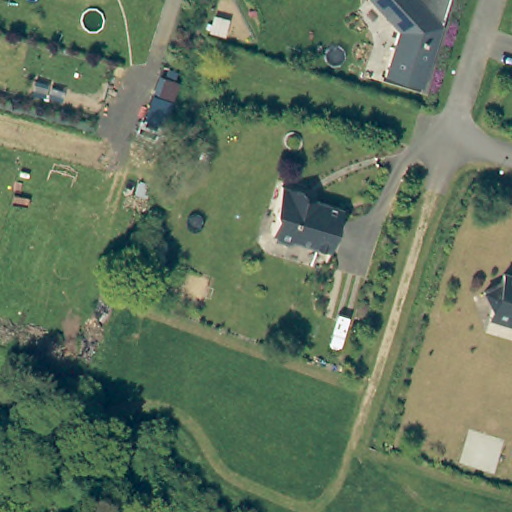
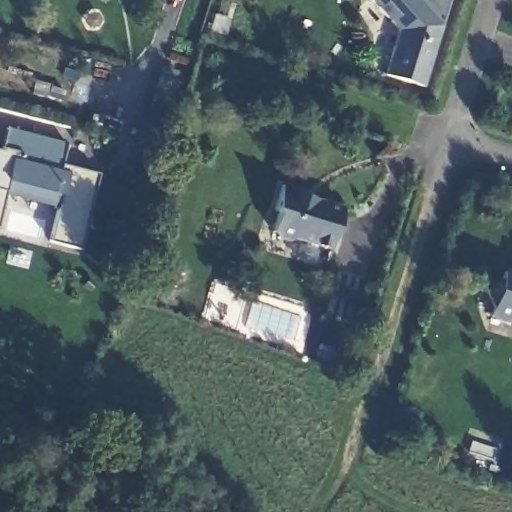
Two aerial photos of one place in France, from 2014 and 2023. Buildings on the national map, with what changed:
unchanged [(427,87),(388,75),(402,30),(375,0),(454,0),(427,87)]
unchanged [(160,79),(177,85),(162,128),(144,121),(160,79)]
new [(49,241),(57,208),(4,195),(0,207),(0,150),(2,150),(7,127),(67,141),(61,165),(97,173),(78,250),(49,241)]
unchanged [(328,252),(292,241),(287,244),(275,240),(272,235),(270,235),(275,217),(272,212),(279,187),(302,194),(299,202),(310,205),(316,202),(341,210),(328,252)]
unchanged [(491,305),(482,288),(499,280),(502,270),(512,272),(512,323),(487,315),(491,305)]

